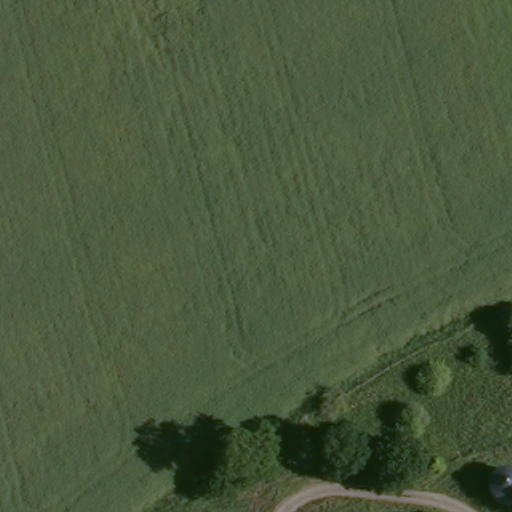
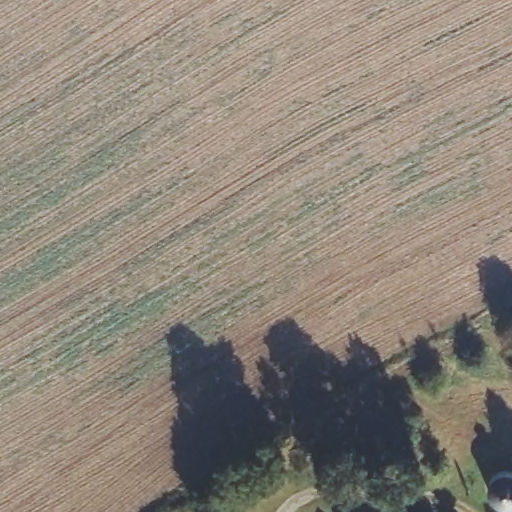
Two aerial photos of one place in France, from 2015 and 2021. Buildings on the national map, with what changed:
unchanged [(512,468),(512,500),(505,501),(496,497),(492,489),(493,480),(498,471),(508,468),(512,468)]

